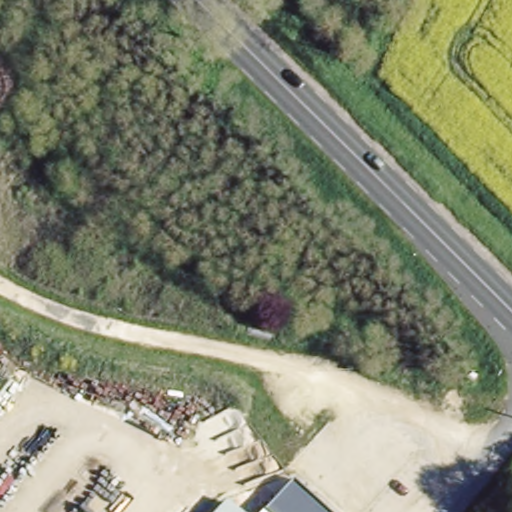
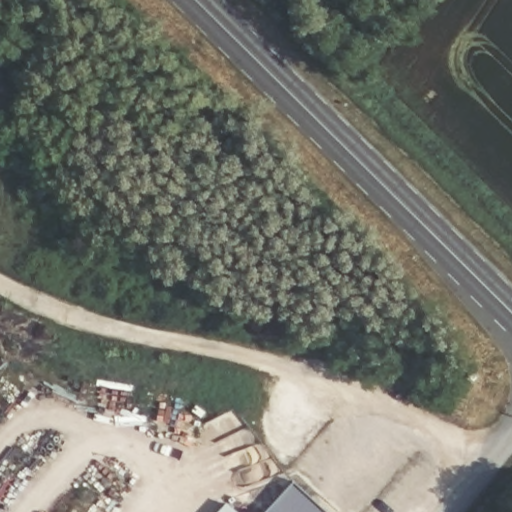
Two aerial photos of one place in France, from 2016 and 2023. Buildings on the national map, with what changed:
unchanged [(290,478),(328,512),(261,512),(260,511),(290,478)]
unchanged [(225,501),(237,512),(215,512),(225,501)]
unchanged [(260,511),(261,512),(259,512),(260,511)]

